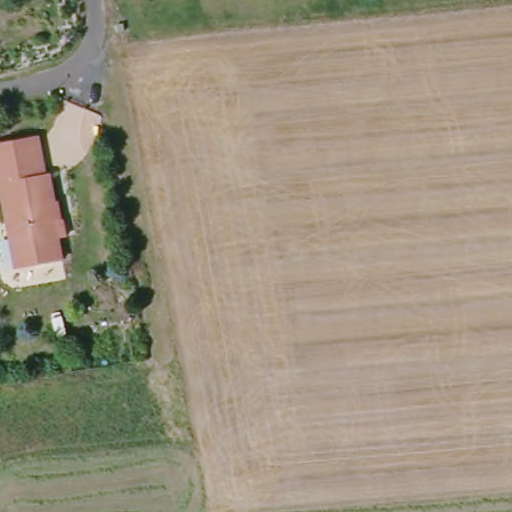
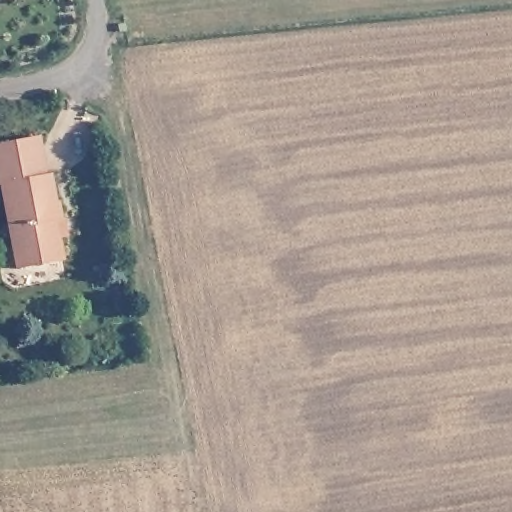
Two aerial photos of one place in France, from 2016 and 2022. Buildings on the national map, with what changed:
unchanged [(0,214),(0,144),(30,138),(40,177),(43,182),(48,203),(51,208),(55,226),(45,228),(48,243),(52,242),(57,265),(11,272),(0,214)]

